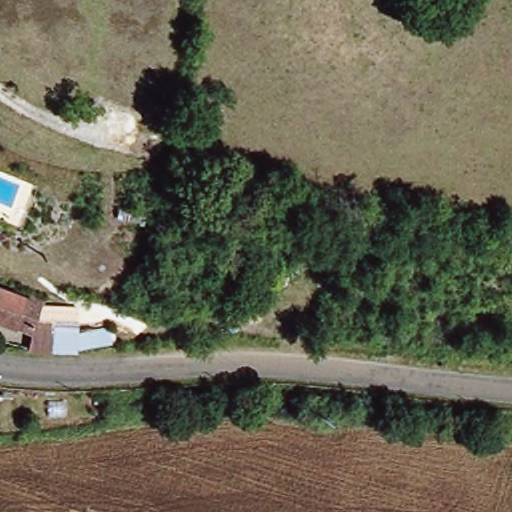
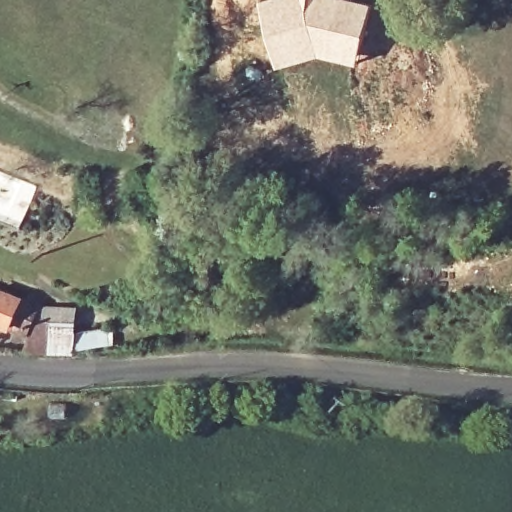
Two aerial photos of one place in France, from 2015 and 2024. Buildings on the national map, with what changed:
new [(362,61),(320,51),(282,63),(263,1),(268,0),(355,0),(374,4),(362,61)]
unchanged [(84,351),(86,358),(29,358),(34,330),(0,318),(0,287),(29,299),(36,287),(51,297),(44,317),(79,320),(80,327),(114,320),(119,343),(84,351)]

